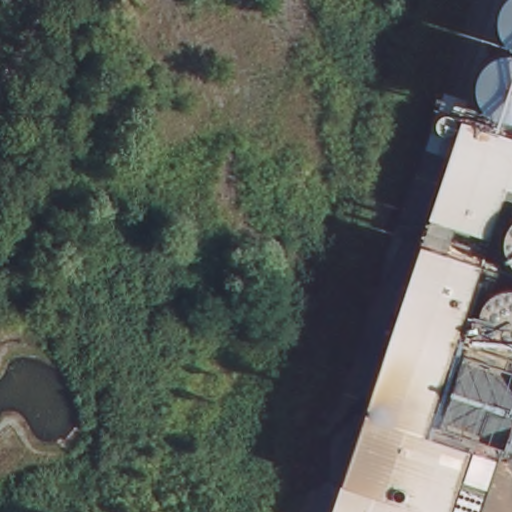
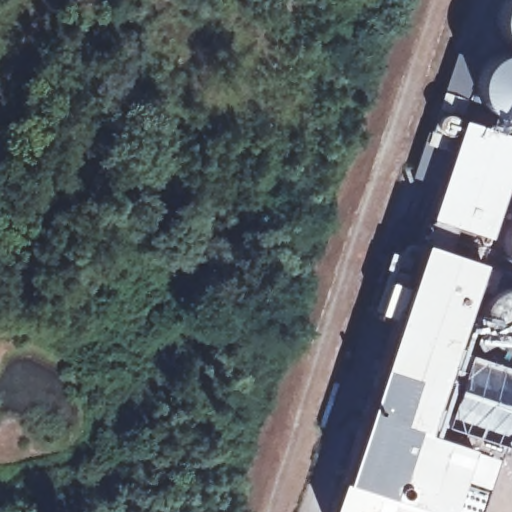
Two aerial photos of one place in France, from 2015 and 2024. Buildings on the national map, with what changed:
unchanged [(500,10),(506,0),(512,0),(512,119),(504,120),(488,115),(479,104),(476,78),(485,63),(496,54),(507,46),(500,30),(500,10)]
unchanged [(512,189),(505,187),(487,236),(455,227),(450,250),(423,241),(430,219),(464,120),(512,137),(512,189)]
unchanged [(503,246),(506,233),(509,222),(512,219),(512,264),(508,260),(503,246)]
unchanged [(427,421),(372,402),(367,404),(423,241),(450,250),(480,262),(458,338),(427,421)]
unchanged [(512,348),(502,348),(488,343),(481,336),(478,323),(480,311),(485,300),(493,291),(502,288),(512,286),(512,348)]
unchanged [(505,363),(512,366),(512,422),(501,456),(484,512),(401,512),(341,492),(343,485),(336,482),(358,410),(368,413),(372,402),(427,421),(458,338),(507,355),(505,363)]
unchanged [(401,512),(333,512),(341,492),(401,512)]

